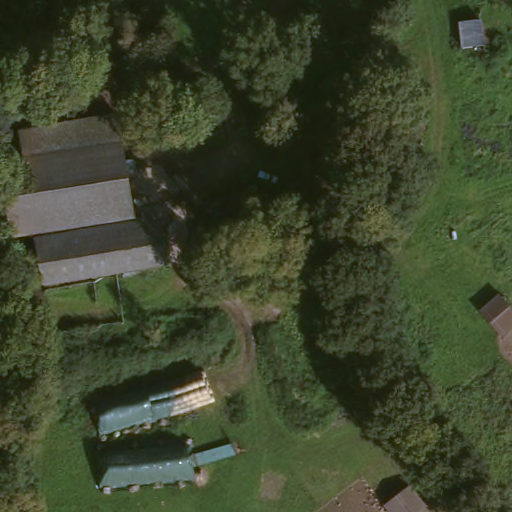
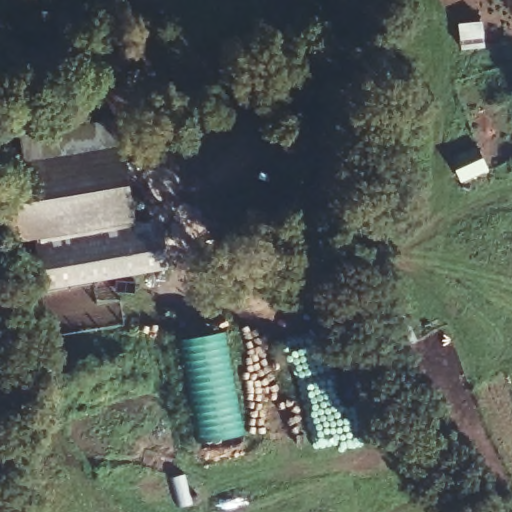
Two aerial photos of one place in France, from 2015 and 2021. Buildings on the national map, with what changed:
unchanged [(479,17),(482,44),(457,46),(456,20),(479,17)]
unchanged [(31,238),(8,240),(0,190),(0,160),(124,141),(134,222),(160,219),(167,268),(39,287),(31,238)]
new [(221,332),(242,433),(204,441),(183,339),(221,332)]

